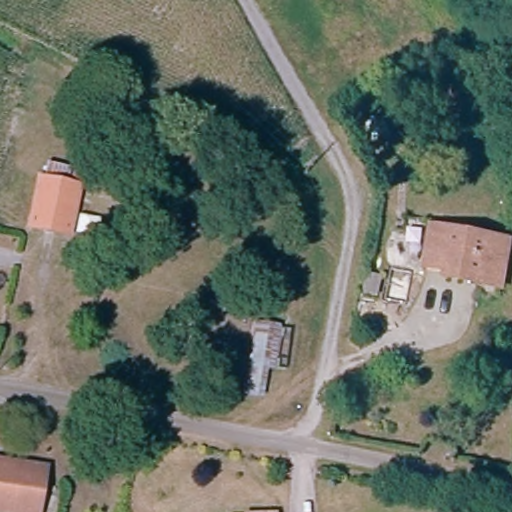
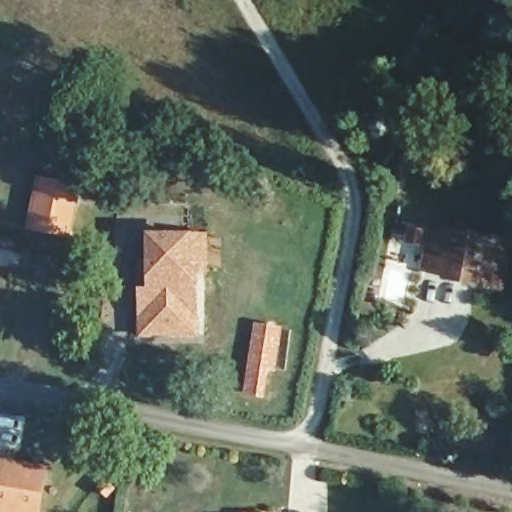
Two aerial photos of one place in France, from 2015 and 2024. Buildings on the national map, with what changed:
unchanged [(39,184),(67,189),(71,174),(83,177),(72,241),(29,233),(39,184)]
unchanged [(496,292),(474,286),(475,279),(443,271),(425,265),(436,230),(453,232),(509,247),(496,292)]
new [(148,259),(147,232),(194,233),(210,234),(210,275),(201,276),(202,339),(140,339),(139,259),(148,259)]
unchanged [(287,376),(268,373),(263,402),(245,399),(251,362),(236,360),(240,339),(254,342),(255,330),(293,337),(287,376)]
unchanged [(50,472),(43,512),(2,512),(0,512),(0,465),(50,472)]

